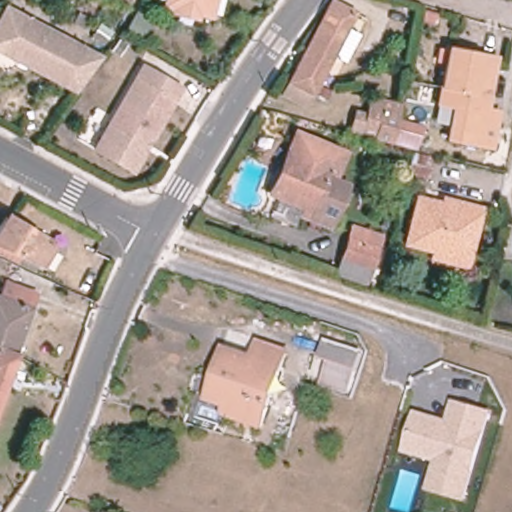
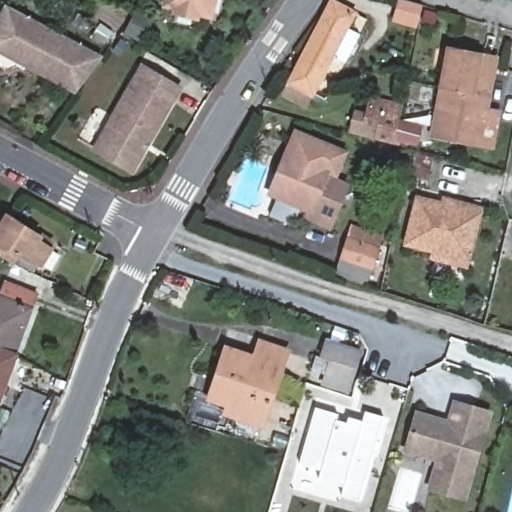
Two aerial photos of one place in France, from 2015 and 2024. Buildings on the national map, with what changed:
unchanged [(208,17),(204,16),(196,15),(190,18),(178,15),(174,9),(163,5),(164,0),(213,0),(208,17)]
unchanged [(284,91),(291,77),(331,0),(341,0),(356,7),(348,22),(361,30),(347,57),(334,50),(314,89),(307,102),(284,91)]
new [(402,0),(423,6),(420,27),(396,20),(402,0)]
unchanged [(74,92),(21,65),(24,61),(0,49),(0,22),(6,10),(99,59),(97,61),(74,92)]
unchanged [(443,86),(450,49),(482,55),(481,60),(497,62),(496,66),(491,95),(487,119),(498,121),(494,146),(449,138),(455,106),(440,103),(443,86)]
unchanged [(175,91),(176,92),(174,96),(172,99),(151,130),(124,172),(93,151),(117,114),(144,71),(175,91)]
unchanged [(359,125),(368,93),(400,101),(393,140),(347,127),(348,122),(359,125)]
unchanged [(304,215),(306,207),(272,194),(291,149),(298,132),(345,152),(334,180),(347,185),(331,225),(304,215)]
unchanged [(433,158),(429,176),(410,172),(415,154),(433,158)]
unchanged [(483,208),(470,261),(407,244),(419,197),(462,208),(463,203),(483,208)]
unchanged [(0,256),(0,227),(5,220),(52,250),(42,265),(20,254),(15,263),(6,258),(0,256)]
unchanged [(338,273),(350,240),(355,227),(382,236),(378,249),(367,283),(338,273)]
unchanged [(14,286),(10,301),(28,307),(13,352),(0,388),(0,289),(2,282),(14,286)]
unchanged [(256,405),(268,409),(263,425),(227,412),(230,405),(212,398),(228,349),(257,358),(263,342),(288,351),(283,366),(271,362),(256,405)]
unchanged [(325,382),(333,358),(324,355),(328,342),(361,352),(348,390),(325,382)]
unchanged [(467,502),(426,490),(434,460),(401,451),(413,408),(446,418),(452,398),(493,410),(467,502)]
new [(340,495),(343,485),(318,478),(321,470),(300,463),(316,406),(361,420),(364,410),(384,416),(359,500),(340,495)]

